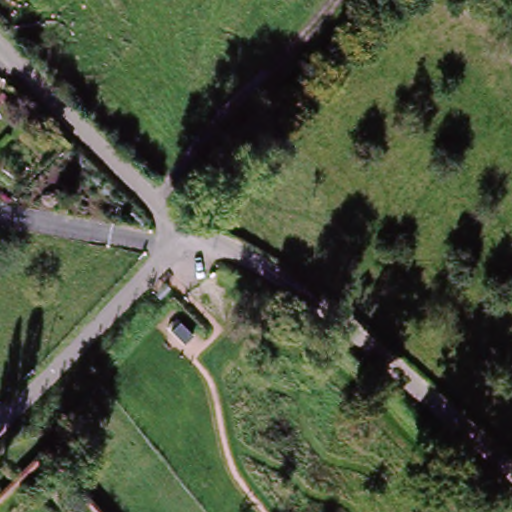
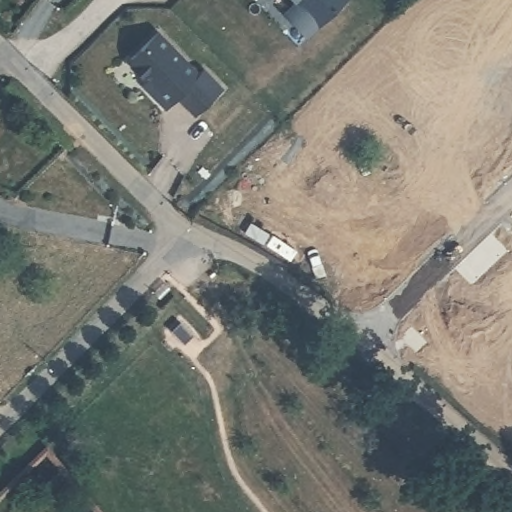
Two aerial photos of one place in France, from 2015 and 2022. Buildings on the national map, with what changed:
demolished [(27,1),(26,0),(28,0),(27,1)]
new [(298,5),(293,0),(347,0),(309,39),(287,16),(298,5)]
new [(132,69),(132,62),(159,35),(200,77),(205,73),(223,91),(196,118),(179,100),(167,112),(153,97),(144,88),(147,85),(132,69)]

